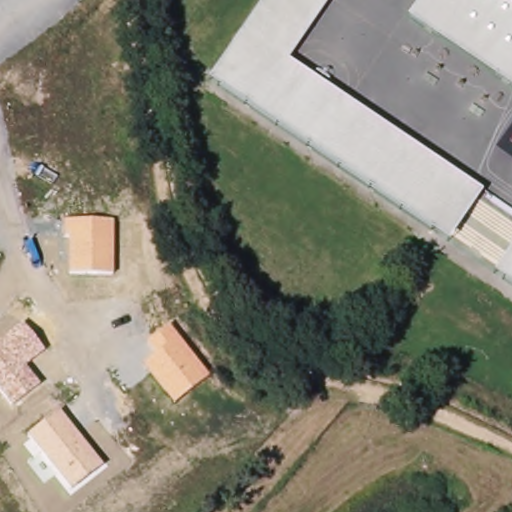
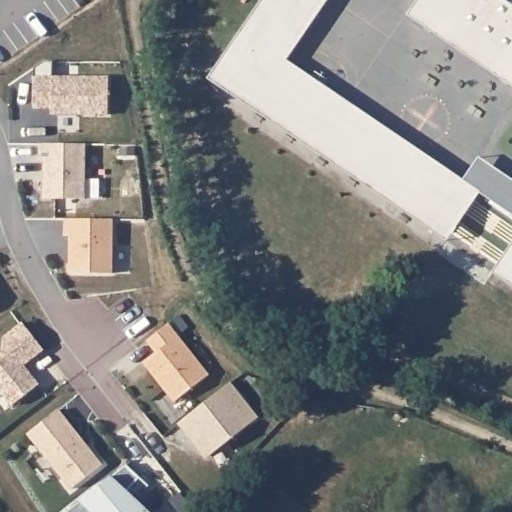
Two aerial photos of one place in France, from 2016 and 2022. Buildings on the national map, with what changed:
unchanged [(260,6),(264,0),(332,0),(307,37),(260,6)]
unchanged [(512,86),(410,15),(420,0),(497,0),(512,11),(512,86)]
unchanged [(512,0),(512,11),(497,0),(512,0)]
unchanged [(307,37),(288,64),(482,197),(445,245),(206,80),(260,6),(307,37)]
new [(34,68),(43,61),(52,61),(52,76),(109,76),(109,115),(51,114),(51,109),(34,109),(34,68)]
new [(40,144),(85,144),(85,199),(44,199),(44,161),(40,161),(40,144)]
unchanged [(70,237),(65,237),(65,218),(66,219),(114,220),(112,273),(70,272),(70,237)]
unchanged [(512,251),(512,283),(497,273),(512,251)]
unchanged [(0,390),(0,342),(24,324),(44,350),(25,366),(40,384),(10,405),(0,390)]
unchanged [(144,362),(157,353),(148,341),(170,324),(209,375),(175,401),(144,362)]
new [(231,382),(259,417),(206,458),(179,423),(231,382)]
unchanged [(29,434),(60,409),(102,463),(71,488),(29,434)]
new [(126,465),(140,477),(127,491),(151,512),(66,512),(126,465)]

